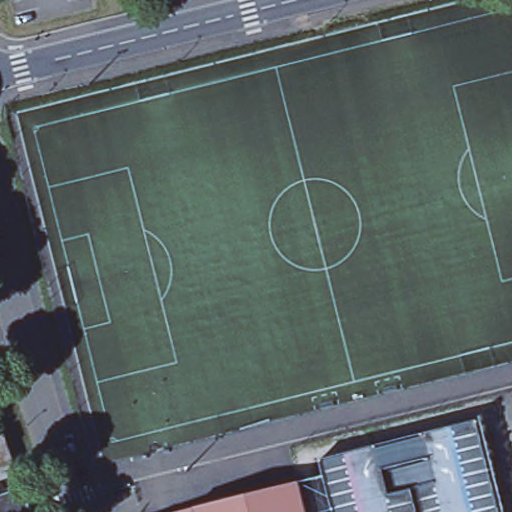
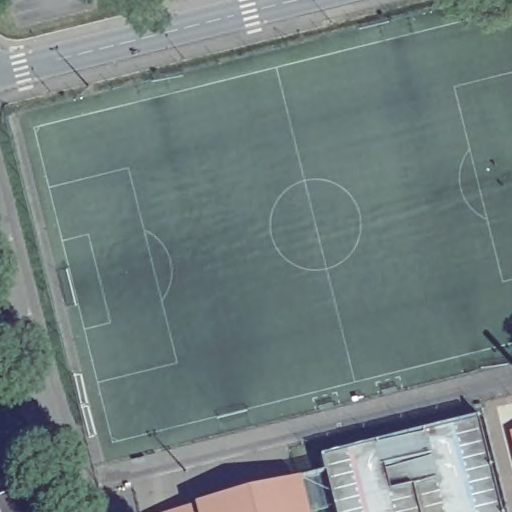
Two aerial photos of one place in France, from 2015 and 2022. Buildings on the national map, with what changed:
unchanged [(5,437),(14,464),(0,469),(0,438),(5,437)]
unchanged [(309,512),(186,512),(303,484),(309,512)]
unchanged [(22,489),(26,502),(30,512),(0,512),(0,497),(22,489)]

